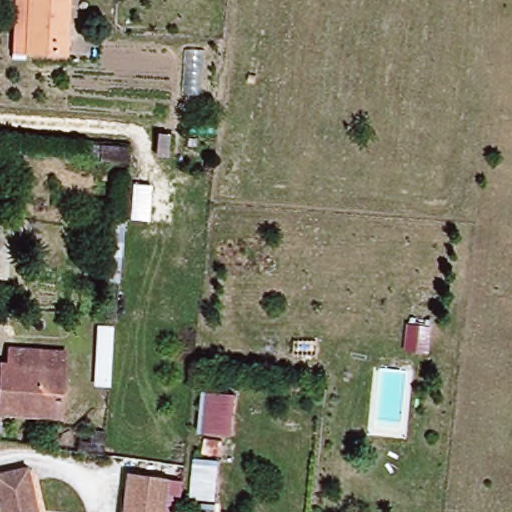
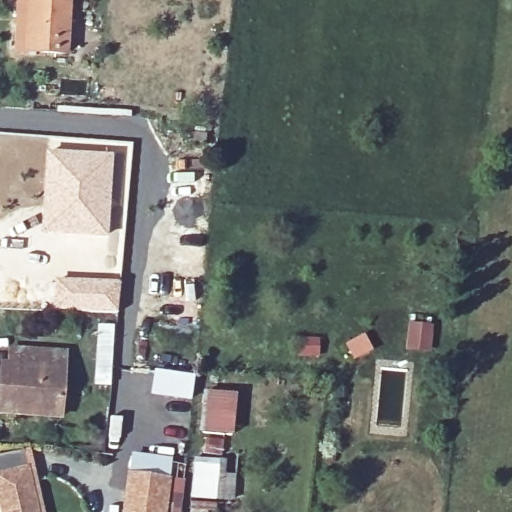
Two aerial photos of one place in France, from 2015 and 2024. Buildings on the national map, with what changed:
unchanged [(17,51),(20,0),(36,0),(34,52),(17,51)]
unchanged [(34,52),(36,0),(70,0),(67,54),(34,52)]
new [(47,148),(59,147),(60,137),(134,142),(125,232),(110,232),(110,237),(42,234),(47,148)]
new [(55,277),(121,281),(117,315),(52,311),(55,277)]
new [(97,323),(115,325),(111,386),(92,385),(97,323)]
unchanged [(0,411),(0,363),(2,362),(12,362),(12,347),(65,352),(61,415),(0,411)]
unchanged [(191,460),(202,460),(207,436),(197,435),(201,392),(236,397),(231,437),(224,437),(219,464),(217,512),(187,512),(191,460)]
unchanged [(0,502),(0,475),(27,468),(31,482),(37,512),(2,512),(0,502)]
unchanged [(169,479),(164,512),(124,512),(129,473),(169,479)]

